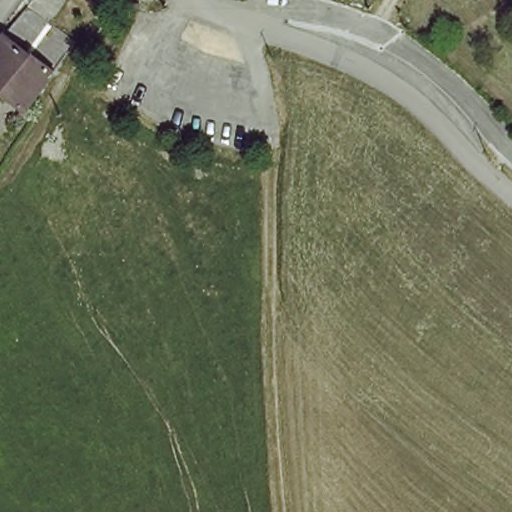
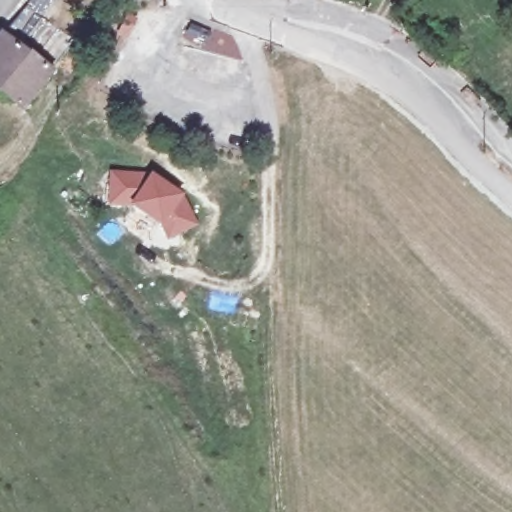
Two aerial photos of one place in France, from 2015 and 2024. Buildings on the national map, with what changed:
unchanged [(0,94),(0,41),(5,35),(56,74),(25,112),(0,94)]
new [(170,234),(163,221),(162,220),(133,203),(110,203),(111,173),(151,174),(156,177),(169,184),(181,192),(197,220),(176,232),(170,234)]

